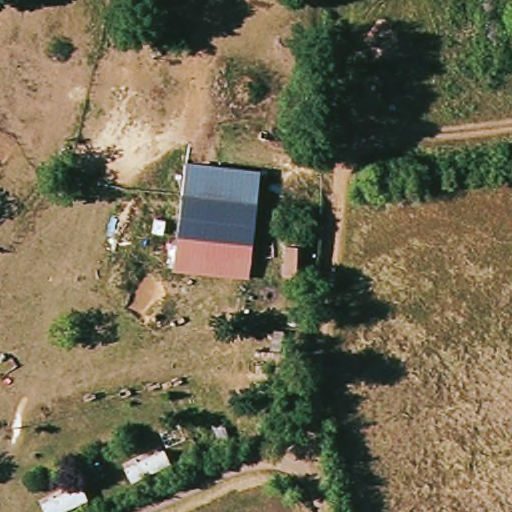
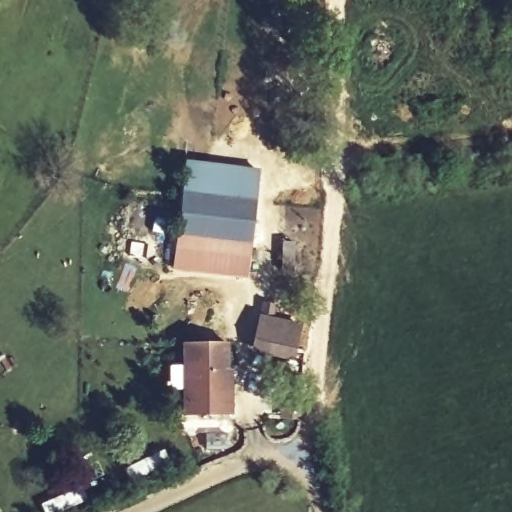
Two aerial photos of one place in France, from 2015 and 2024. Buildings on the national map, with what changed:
unchanged [(260,167),(250,278),(173,268),(185,159),(260,167)]
unchanged [(301,172),(305,189),(282,194),(280,176),(301,172)]
unchanged [(164,210),(152,235),(140,230),(150,204),(164,210)]
new [(282,242),(305,243),(305,276),(282,276),(282,242)]
new [(263,301),(272,303),(269,316),(307,323),(299,364),(252,352),(263,301)]
new [(231,343),(232,414),(182,416),(182,344),(231,343)]
unchanged [(172,465),(133,482),(126,468),(164,449),(172,465)]
unchanged [(63,512),(48,512),(45,505),(84,487),(89,501),(63,512)]

